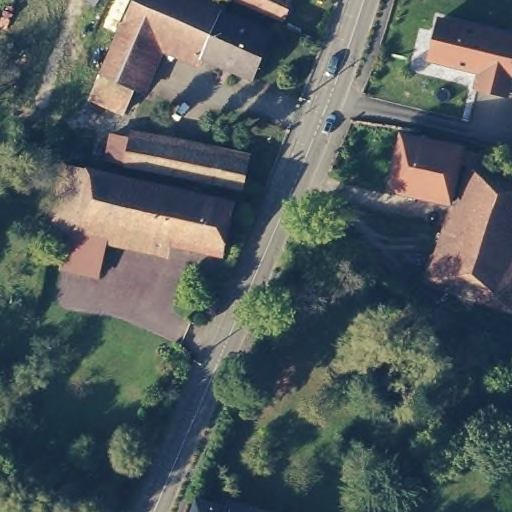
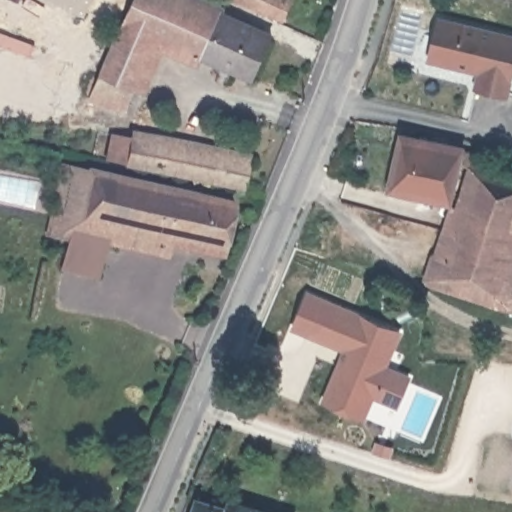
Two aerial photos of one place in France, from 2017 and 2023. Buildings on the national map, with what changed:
unchanged [(256,77),(160,36),(125,111),(123,110),(97,97),(102,83),(105,77),(138,0),(199,0),(275,34),(256,77)]
unchanged [(248,0),(294,0),(285,17),(248,0)]
unchanged [(440,21),(512,38),(512,77),(507,96),(478,89),(482,72),(430,61),(440,21)]
unchanged [(475,199),(401,182),(412,131),(493,150),(492,159),(512,164),(512,266),(505,290),(503,297),(462,285),(437,277),(447,247),(460,251),(475,199)]
unchanged [(253,164),(249,187),(113,159),(117,136),(253,164)]
unchanged [(95,173),(85,221),(78,220),(73,237),(55,233),(70,167),(95,173)]
unchanged [(238,203),(226,251),(112,227),(100,277),(67,268),(73,237),(78,220),(85,221),(95,173),(238,203)]
unchanged [(505,290),(512,266),(512,292),(505,290)]
new [(320,403),(342,351),(291,328),(308,290),(402,330),(388,364),(411,374),(397,408),(373,400),(365,421),(320,403)]
demolished [(305,479),(302,490),(301,490),(296,509),(290,507),(289,512),(278,512),(288,475),(305,479)]
unchanged [(266,512),(193,512),(197,500),(226,507),(228,502),(266,512)]

